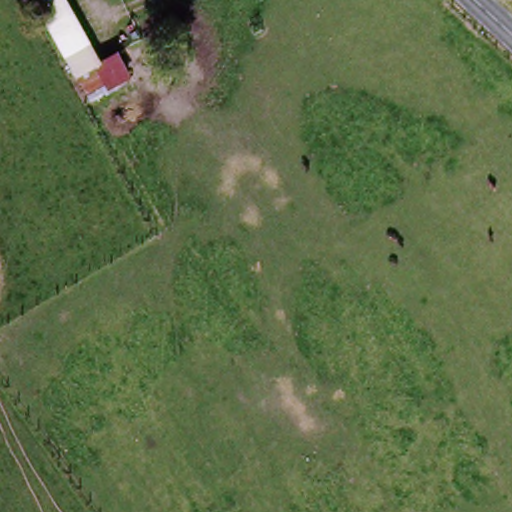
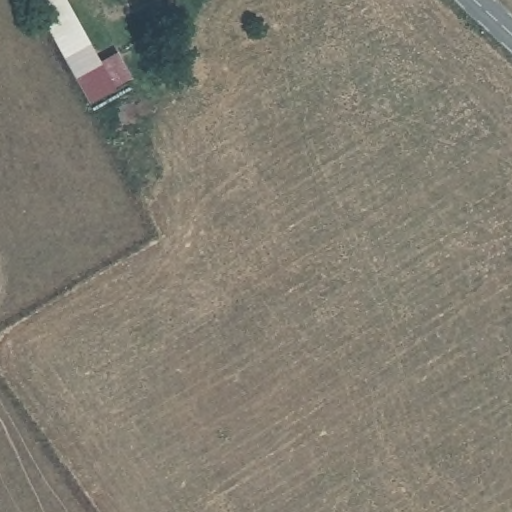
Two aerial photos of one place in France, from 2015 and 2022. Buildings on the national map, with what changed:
unchanged [(59,0),(99,74),(110,94),(91,104),(80,84),(35,0),(59,0)]

